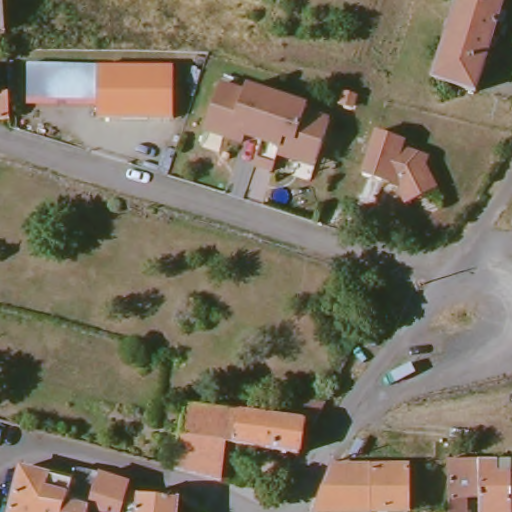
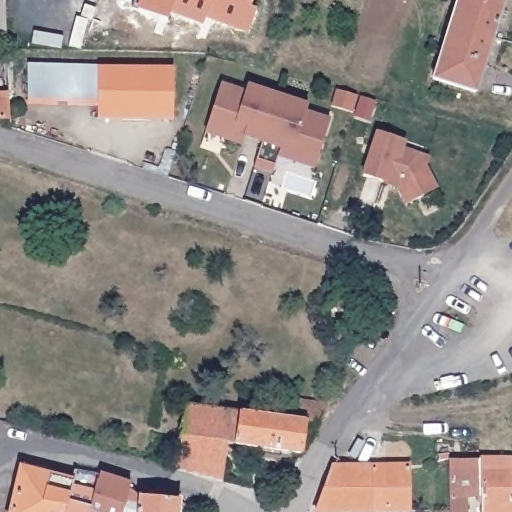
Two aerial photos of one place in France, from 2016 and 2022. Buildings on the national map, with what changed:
unchanged [(7,31),(0,29),(0,0),(5,0),(6,20),(7,31)]
new [(259,8),(251,31),(208,15),(205,24),(172,11),(169,20),(134,7),(136,0),(255,0),(252,6),(259,8)]
unchanged [(454,0),(503,0),(491,36),(447,23),(454,0)]
unchanged [(474,88),(431,75),(447,23),(491,36),(474,88)]
unchanged [(26,98),(24,77),(24,64),(60,64),(58,99),(26,98)]
unchanged [(95,117),(95,99),(58,99),(60,64),(172,64),(171,117),(95,117)]
unchanged [(236,87),(245,90),(247,83),(309,102),(307,109),(331,117),(319,155),(300,150),(297,157),(280,151),(282,144),(246,132),(244,140),(225,134),(227,126),(222,125),(209,121),(221,82),(236,87)]
unchanged [(0,119),(0,94),(10,92),(11,110),(11,118),(0,119)]
unchanged [(433,189),(401,202),(392,178),(384,175),(382,178),(360,171),(374,127),(401,135),(397,143),(422,151),(421,158),(433,189)]
unchanged [(226,443),(220,480),(177,469),(189,404),(292,417),(295,399),(327,402),(315,424),(306,422),(300,454),(226,443)]
unchanged [(451,493),(449,454),(479,453),(481,490),(451,493)]
unchanged [(481,490),(479,453),(512,454),(512,512),(481,512),(481,490)]
unchanged [(370,512),(367,467),(405,466),(406,512),(370,512)]
unchanged [(369,512),(312,512),(330,468),(367,467),(370,512),(369,512)]
unchanged [(101,473),(91,512),(12,512),(22,470),(50,476),(74,481),(77,470),(101,473)]
unchanged [(91,512),(101,473),(132,482),(130,488),(124,512),(91,512)]
unchanged [(130,488),(137,495),(180,498),(179,512),(124,512),(130,488)]

